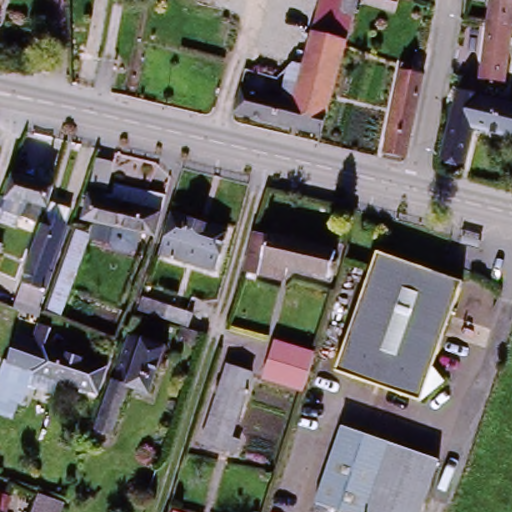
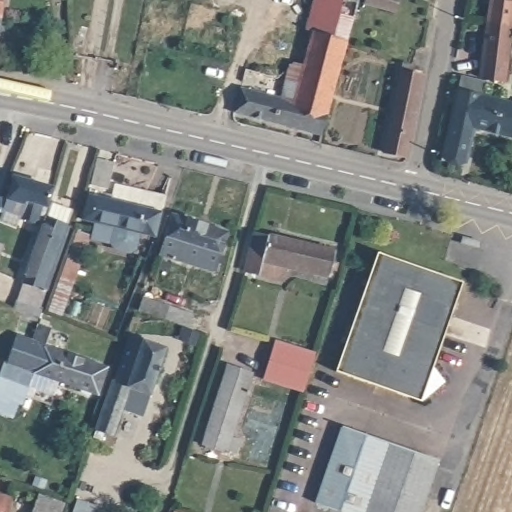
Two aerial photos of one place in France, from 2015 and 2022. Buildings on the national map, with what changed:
unchanged [(0,0),(2,0),(0,11),(0,0)]
unchanged [(201,0),(199,7),(175,3),(176,0),(201,0)]
unchanged [(300,65),(319,0),(358,0),(360,1),(354,23),(349,43),(347,49),(339,76),(300,65)]
unchanged [(364,0),(399,0),(395,15),(362,5),(364,0)]
unchanged [(512,0),(512,35),(510,35),(502,80),(479,76),(485,32),(490,0),(512,0)]
unchanged [(241,91),(277,100),(280,84),(294,86),(300,65),(339,76),(329,114),(322,139),(235,116),(241,91)]
unchanged [(398,76),(400,69),(408,71),(406,78),(420,81),(403,160),(382,155),(398,76)]
unchanged [(465,161),(437,156),(452,90),(455,76),(482,81),(479,96),(512,104),(512,135),(472,127),(465,161)]
unchanged [(105,185),(92,181),(98,156),(112,161),(105,185)]
unchanged [(37,221),(4,212),(13,178),(52,188),(47,205),(42,204),(37,221)]
unchanged [(108,246),(113,230),(84,221),(92,194),(107,198),(113,182),(163,196),(151,241),(135,236),(130,253),(125,256),(110,251),(108,246)]
unchanged [(49,218),(65,223),(37,304),(20,299),(49,218)]
unchanged [(160,258),(171,218),(225,233),(215,273),(160,258)]
unchanged [(62,318),(48,310),(78,232),(92,236),(62,318)]
unchanged [(270,279),(242,272),(252,234),(337,254),(331,278),(284,268),(280,281),(270,279)]
unchanged [(422,267),(395,360),(393,370),(344,357),(377,253),(422,267)]
unchanged [(463,280),(435,365),(448,381),(424,400),(339,372),(344,357),(393,370),(395,360),(422,267),(463,280)]
unchanged [(187,331),(158,321),(137,315),(143,295),(192,311),(187,328),(187,331)]
unchanged [(33,333),(36,326),(50,331),(44,349),(105,370),(97,396),(32,374),(20,408),(8,405),(0,401),(0,376),(4,364),(17,327),(33,333)]
unchanged [(132,336),(166,349),(148,398),(128,392),(113,437),(105,434),(100,448),(92,445),(97,432),(132,336)]
unchanged [(273,344),(314,355),(312,361),(302,392),(263,380),(272,349),(273,344)]
unchanged [(203,445),(227,369),(250,376),(231,435),(241,438),(235,455),(203,445)]
unchanged [(313,508),(333,448),(339,431),(388,447),(437,463),(431,481),(420,512),(325,512),(313,508)]
unchanged [(0,493),(15,499),(10,512),(0,512),(0,493)]
unchanged [(40,496),(64,504),(61,512),(35,512),(40,496)]

